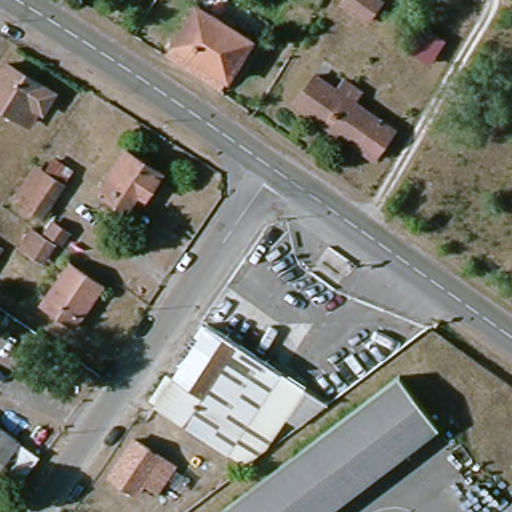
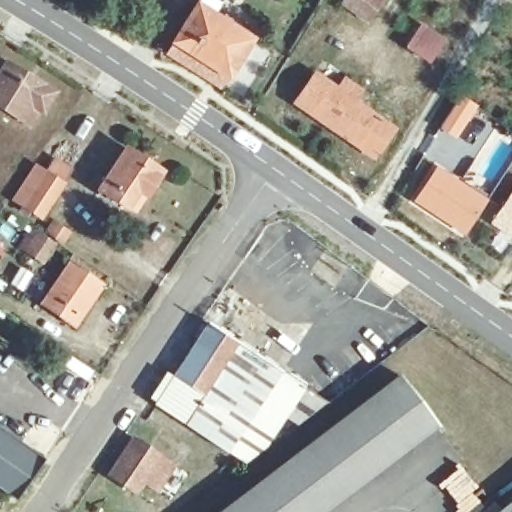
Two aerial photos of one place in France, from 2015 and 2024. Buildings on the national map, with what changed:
unchanged [(363,20),(340,3),(342,0),(376,0),(377,1),(363,20)]
unchanged [(163,52),(169,43),(193,5),(247,39),(223,78),(218,88),(163,52)]
unchanged [(417,58),(393,41),(404,24),(429,41),(417,58)]
unchanged [(41,112),(31,106),(22,120),(0,106),(0,76),(6,66),(52,93),(41,112)]
unchanged [(371,157),(294,103),(313,75),(390,128),(371,157)]
new [(459,94),(478,106),(455,140),(438,128),(459,94)]
unchanged [(93,186),(119,146),(135,156),(154,168),(150,174),(138,193),(127,209),(118,203),(93,186)]
new [(437,164),(488,199),(464,237),(412,201),(437,164)]
unchanged [(41,220),(33,214),(30,219),(22,214),(25,209),(17,204),(41,168),(52,176),(66,185),(41,220)]
new [(488,223),(512,187),(512,240),(511,240),(501,254),(488,244),(498,230),(488,223)]
unchanged [(25,225),(36,234),(44,219),(66,231),(59,247),(54,245),(40,265),(12,247),(25,225)]
unchanged [(101,287),(75,326),(41,303),(67,263),(101,287)]
unchanged [(164,393),(206,330),(312,400),(320,405),(295,424),(285,417),(280,414),(273,425),(259,445),(241,465),(225,455),(154,408),(164,393)]
unchanged [(216,512),(397,375),(434,426),(320,512),(216,512)]
unchanged [(11,436),(30,449),(13,474),(0,464),(0,427),(11,436)]
unchanged [(172,465),(163,480),(157,476),(149,488),(141,482),(134,492),(108,474),(131,439),(172,465)]
unchanged [(512,512),(489,512),(512,495),(512,512)]

